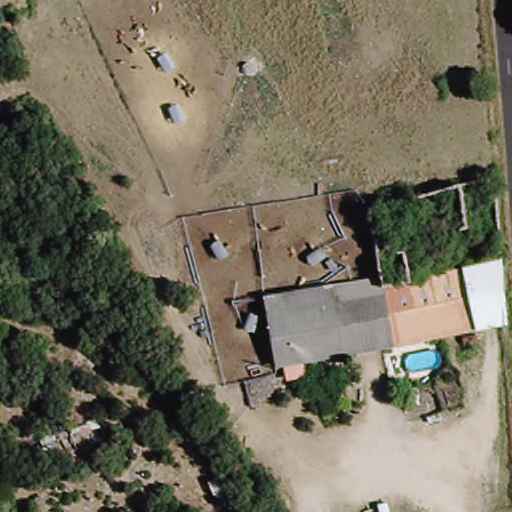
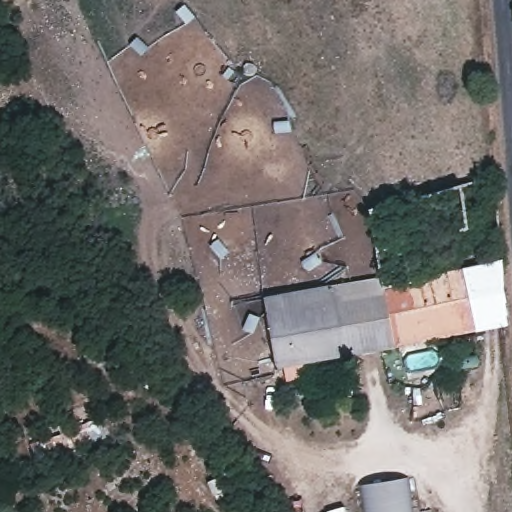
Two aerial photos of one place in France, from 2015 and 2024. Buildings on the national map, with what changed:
unchanged [(414,271),(462,263),(501,261),(504,325),(477,328),(275,369),(265,297),(379,272),(414,271)]
new [(407,476),(412,512),(361,512),(358,485),(407,476)]

